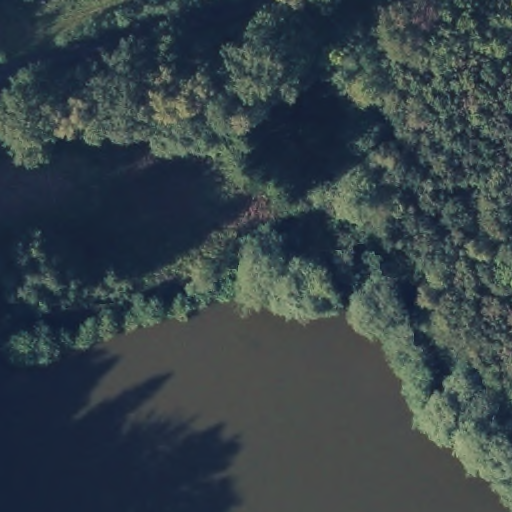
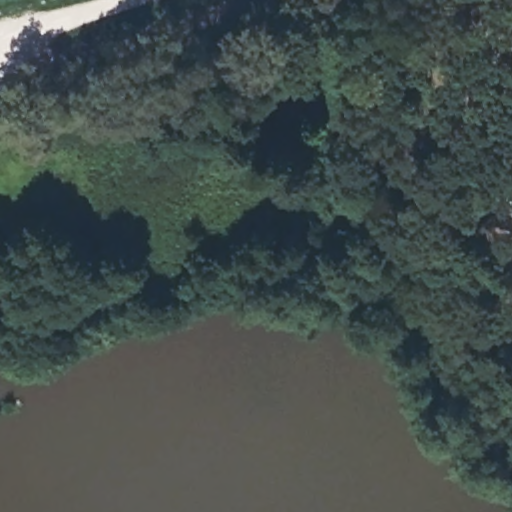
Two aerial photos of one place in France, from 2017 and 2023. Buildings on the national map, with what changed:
unchanged [(230,151),(232,111),(274,115),(272,154),(230,151)]

